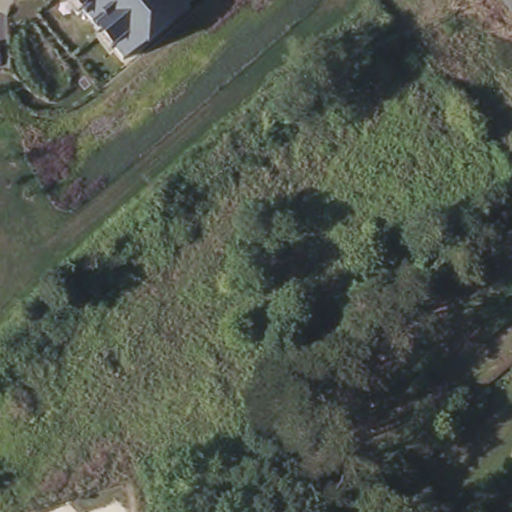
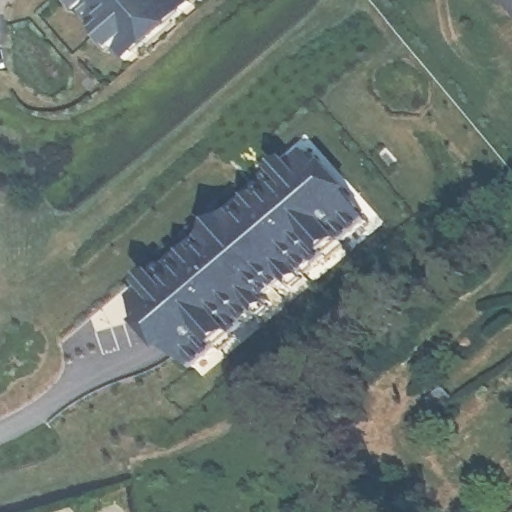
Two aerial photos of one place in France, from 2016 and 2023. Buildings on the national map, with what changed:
unchanged [(197,2),(125,62),(71,0),(195,0),(197,2)]
unchanged [(506,0),(512,0),(512,7),(506,0)]
new [(131,305),(322,136),(376,191),(338,226),(350,240),(194,369),(131,305)]

